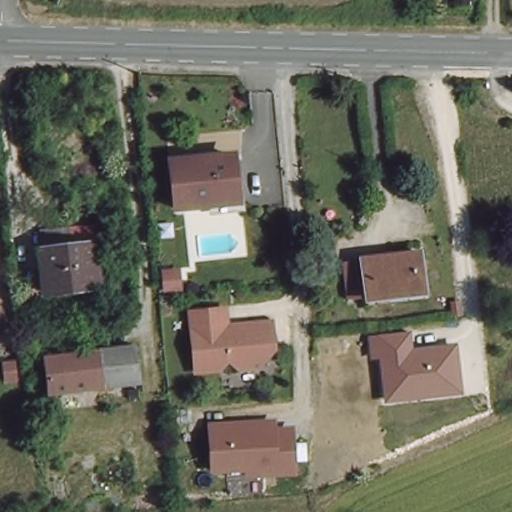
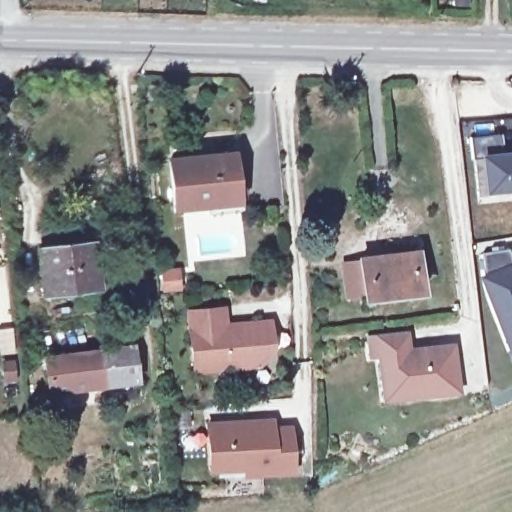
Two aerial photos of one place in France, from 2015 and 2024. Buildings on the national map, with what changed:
new [(475,161),(472,161),(470,140),(498,136),(502,157),(512,155),(512,193),(505,194),(480,198),(475,161)]
unchanged [(231,163),(232,204),(175,210),(173,167),(231,163)]
unchanged [(88,247),(92,288),(44,291),(43,249),(88,247)]
new [(494,303),(496,302),(487,283),(483,259),(510,254),(512,259),(512,347),(494,303)]
unchanged [(413,256),(418,296),(359,305),(353,264),(413,256)]
unchanged [(267,342),(260,343),(260,369),(254,373),(232,374),(222,366),(210,376),(188,378),(185,317),(218,315),(220,331),(265,327),(267,342)]
unchanged [(408,332),(410,348),(453,343),(460,395),(382,402),(377,358),(365,360),(365,336),(408,332)]
unchanged [(132,383),(45,393),(44,364),(129,355),(132,383)]
unchanged [(296,476),(242,481),(242,472),(208,473),(205,423),(276,418),(277,426),(294,425),(296,476)]

